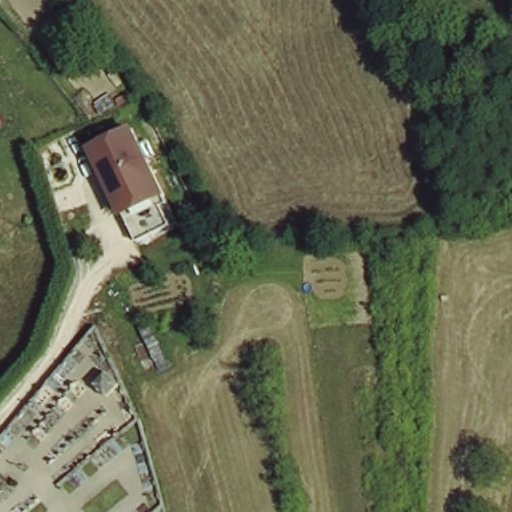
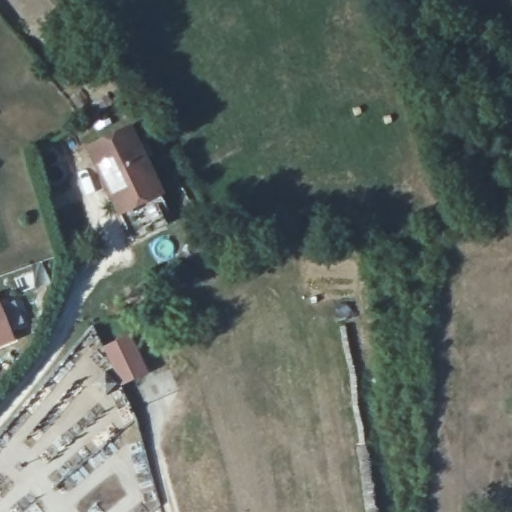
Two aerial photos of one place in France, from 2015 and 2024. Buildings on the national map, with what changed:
unchanged [(168,200),(162,203),(171,223),(136,239),(93,145),(134,126),(168,200)]
new [(0,346),(0,308),(13,341),(0,346)]
new [(148,371),(119,385),(102,348),(131,335),(148,371)]

